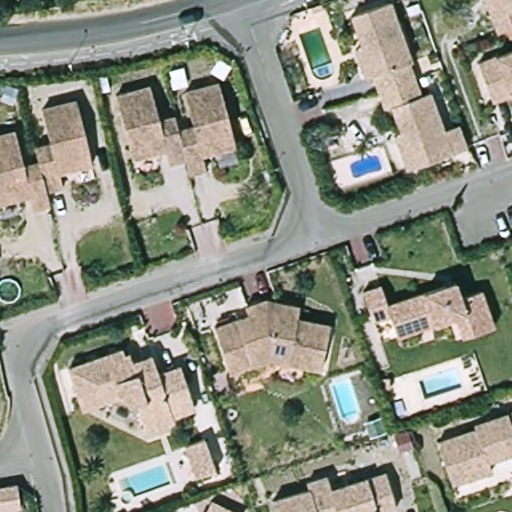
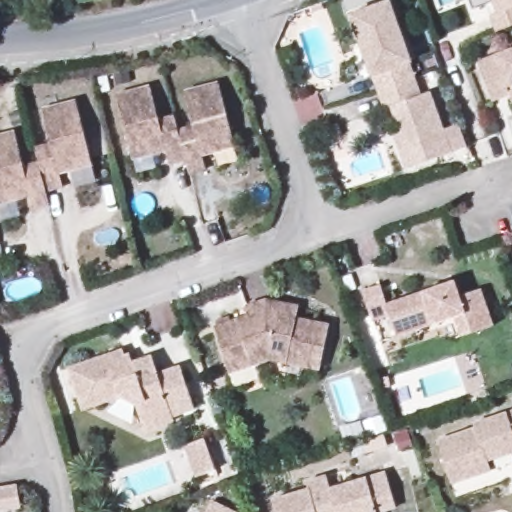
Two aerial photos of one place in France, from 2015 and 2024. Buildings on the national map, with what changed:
unchanged [(400,132),(391,105),(384,108),(371,72),(365,77),(354,47),(363,45),(351,15),(389,0),(410,59),(407,60),(420,94),(429,90),(443,129),(456,123),(465,145),(450,151),(412,165),(406,169),(393,135),(400,132)]
unchanged [(500,31),(492,15),(486,0),(512,0),(512,25),(500,31)]
unchanged [(510,87),(492,95),(479,56),(512,44),(512,93),(510,87)]
unchanged [(131,155),(115,92),(150,84),(157,117),(174,113),(176,129),(193,125),(183,91),(218,81),(233,145),(200,154),(204,168),(188,171),(185,157),(167,161),(164,147),(131,155)]
unchanged [(57,169),(60,184),(44,187),(48,202),(31,206),(26,192),(0,198),(0,132),(13,129),(20,161),(35,159),(32,143),(48,139),(39,105),(73,96),(90,160),(57,169)]
unchanged [(484,285),(496,323),(465,333),(458,313),(400,333),(392,311),(375,317),(365,287),(384,281),(390,300),(458,277),(462,293),(484,285)]
unchanged [(322,366),(273,356),(232,370),(218,323),(251,312),(248,302),(271,295),(290,300),(302,302),(300,313),(332,321),(322,366)]
unchanged [(123,354),(128,352),(130,362),(151,355),(157,373),(178,365),(191,405),(169,412),(172,420),(142,428),(133,402),(118,395),(80,409),(66,365),(120,348),(123,354)]
unchanged [(489,456),(492,467),(452,480),(439,437),(477,425),(476,420),(512,407),(512,448),(489,456)]
unchanged [(213,469),(193,476),(182,444),(201,437),(213,469)]
unchanged [(396,503),(376,510),(376,512),(276,512),(271,495),(307,485),(305,478),(325,471),(329,486),(385,468),(396,503)]
unchanged [(13,485),(23,482),(26,500),(10,504),(0,506),(0,487),(7,486),(13,485)]

